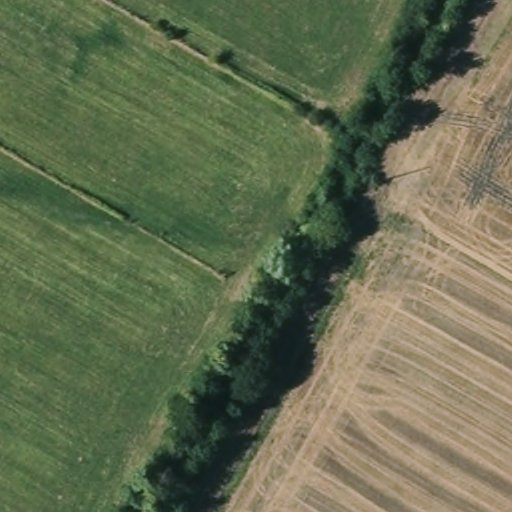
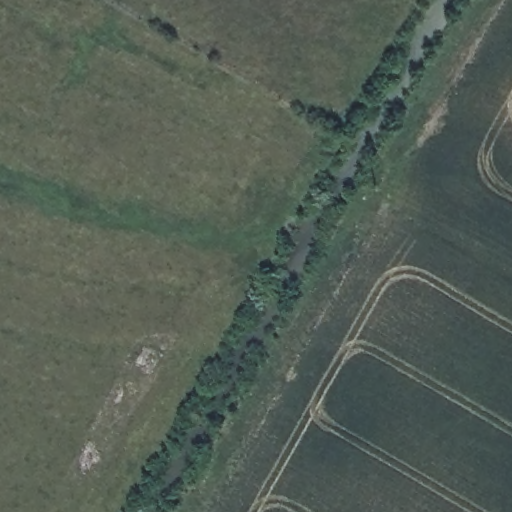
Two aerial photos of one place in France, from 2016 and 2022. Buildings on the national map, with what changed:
[]

